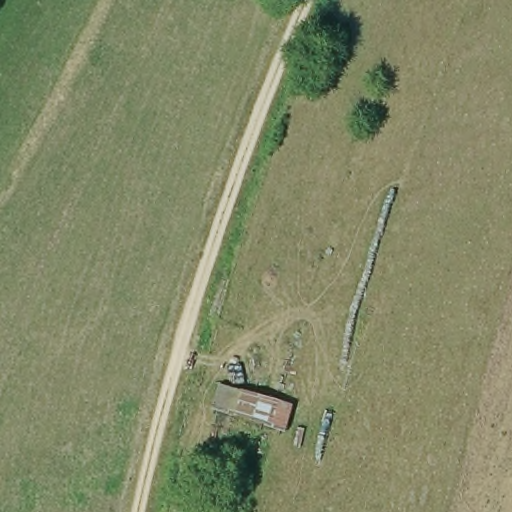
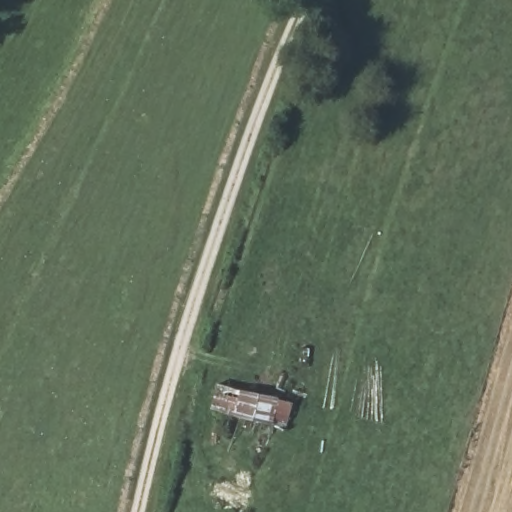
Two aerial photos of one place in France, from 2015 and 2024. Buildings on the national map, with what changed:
unchanged [(282,395),(274,421),(210,409),(217,380),(282,395)]

